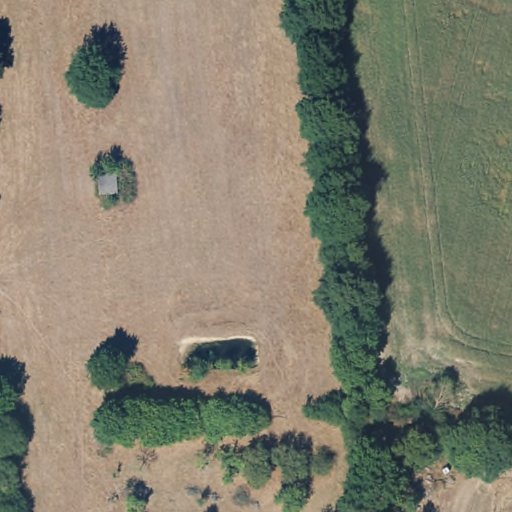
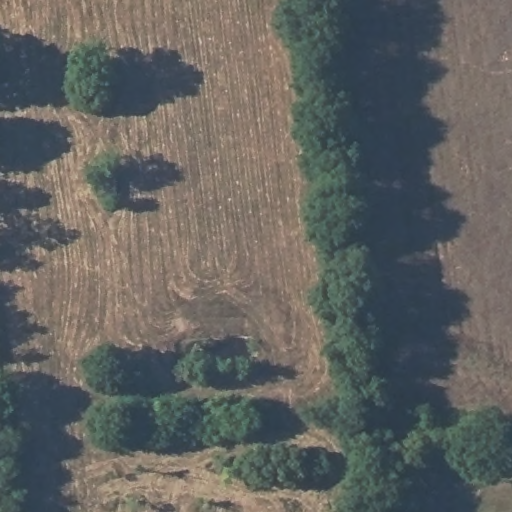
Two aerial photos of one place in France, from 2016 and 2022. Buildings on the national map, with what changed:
unchanged [(115,169),(117,194),(100,196),(98,171),(115,169)]

